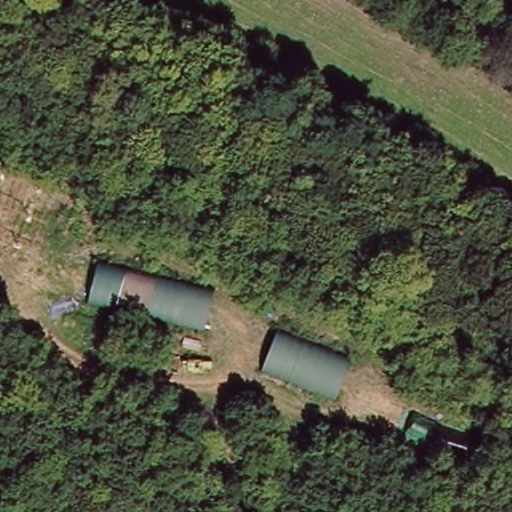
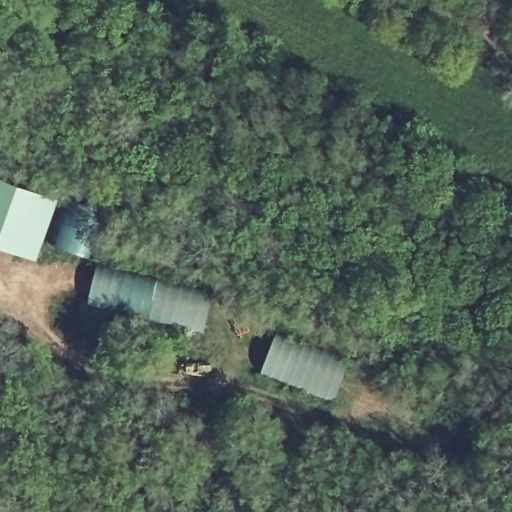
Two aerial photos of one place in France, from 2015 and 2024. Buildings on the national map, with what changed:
new [(34,262),(0,248),(0,179),(57,200),(34,262)]
new [(85,255),(57,245),(62,239),(55,237),(70,196),(102,207),(85,255)]
unchanged [(88,307),(96,263),(210,292),(201,332),(88,307)]
unchanged [(267,371),(280,332),(354,362),(341,398),(267,371)]

